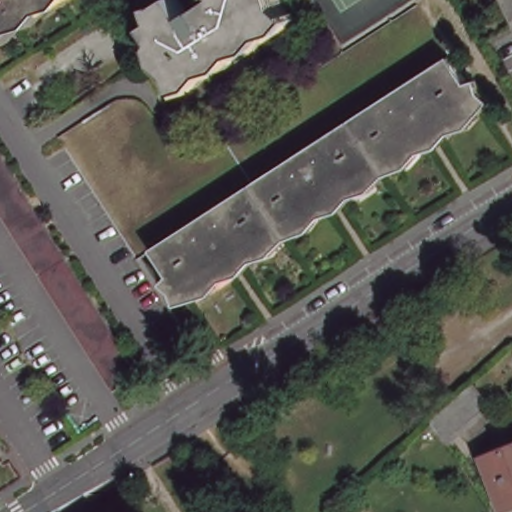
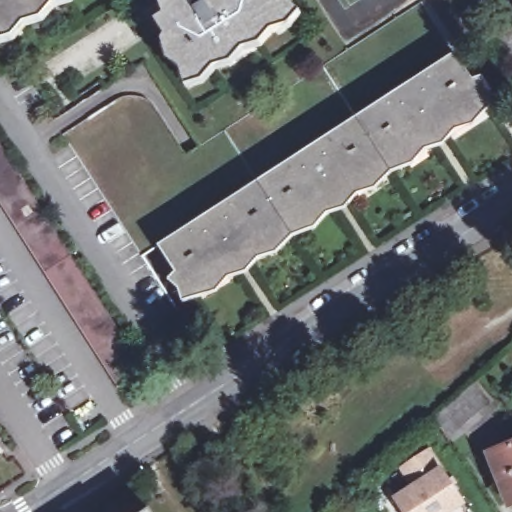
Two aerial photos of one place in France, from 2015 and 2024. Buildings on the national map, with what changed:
unchanged [(1,35),(0,34),(0,0),(55,0),(1,35)]
unchanged [(296,21),(199,85),(163,29),(180,17),(173,7),(184,0),(282,0),(296,21)]
unchanged [(447,60),(457,69),(490,87),(498,96),(490,112),(471,129),(458,132),(448,149),(432,153),(416,171),(395,177),(380,194),(360,201),(345,220),(332,217),(317,235),(295,239),(282,257),(262,265),(250,278),(231,282),(218,296),(194,295),(166,247),(447,60)]
unchanged [(0,198),(0,142),(150,376),(124,393),(0,198)]
unchanged [(495,402),(484,411),(498,436),(480,445),(467,425),(453,436),(438,412),(479,376),(494,395),(491,397),(495,402)]
unchanged [(408,436),(434,418),(441,430),(415,448),(408,436)]
unchanged [(509,490),(492,448),(512,441),(512,489),(509,490)]
unchanged [(0,466),(0,446),(10,460),(0,466)]
new [(456,512),(402,512),(393,498),(409,488),(400,469),(430,449),(441,466),(466,505),(456,512)]
unchanged [(337,512),(330,512),(335,508),(337,512)]

